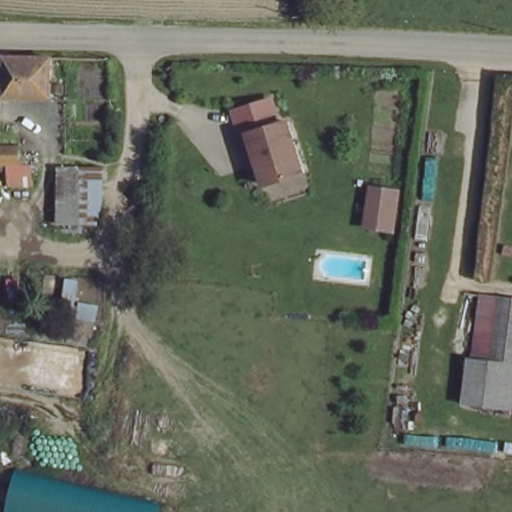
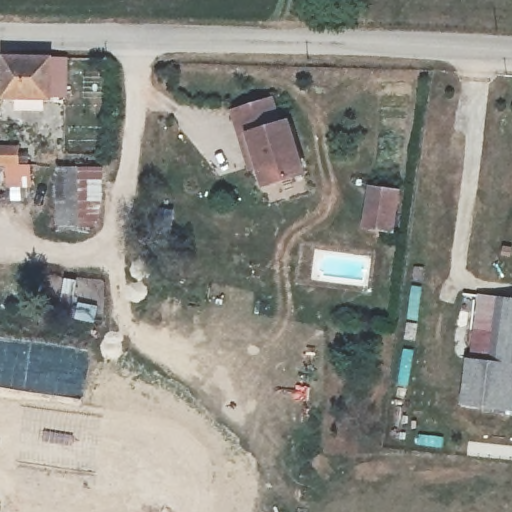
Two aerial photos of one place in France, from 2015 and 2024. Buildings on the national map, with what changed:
unchanged [(52,96),(5,95),(6,56),(53,57),(52,96)]
unchanged [(241,132),(234,108),(274,97),(280,120),(289,120),(303,169),(265,180),(260,162),(250,164),(241,132)]
unchanged [(24,158),(24,179),(0,179),(0,159),(0,158),(24,158)]
unchanged [(104,165),(104,225),(61,225),(59,167),(104,165)]
unchanged [(388,227),(362,224),(369,184),(395,188),(388,227)]
unchanged [(474,293),(512,299),(512,408),(464,405),(474,293)]
new [(14,471),(159,505),(157,512),(3,512),(14,471)]

